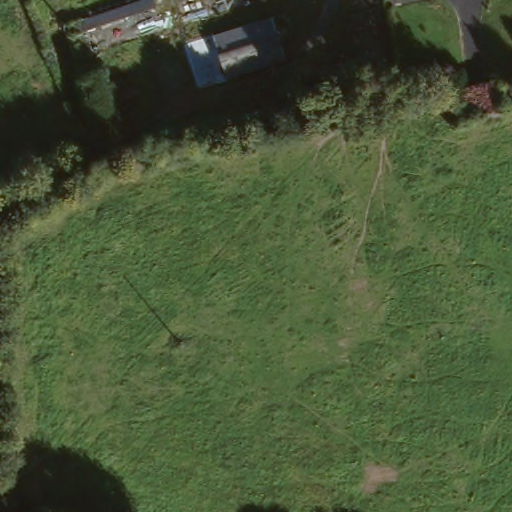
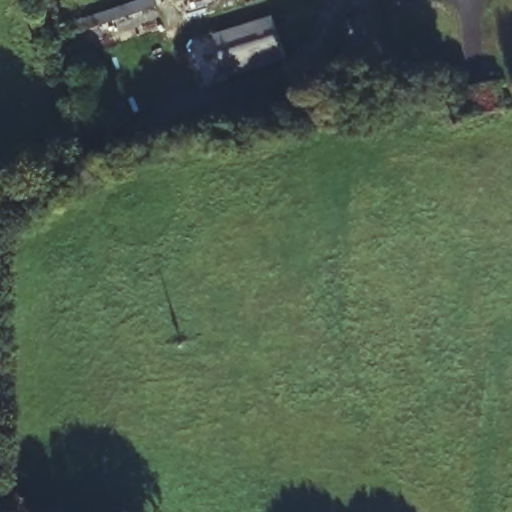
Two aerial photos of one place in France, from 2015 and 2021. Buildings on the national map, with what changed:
unchanged [(67,24),(120,6),(136,0),(153,0),(155,9),(71,35),(67,24)]
unchanged [(177,1),(177,0),(179,0),(177,1)]
unchanged [(281,52),(224,72),(211,35),(270,15),(281,52)]
unchanged [(504,110),(458,123),(453,93),(481,85),(497,81),(504,110)]

